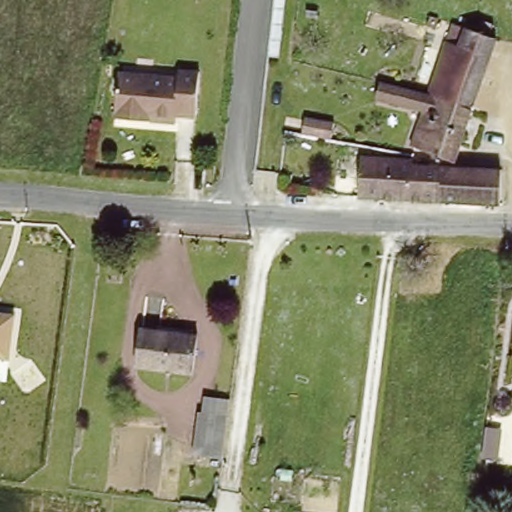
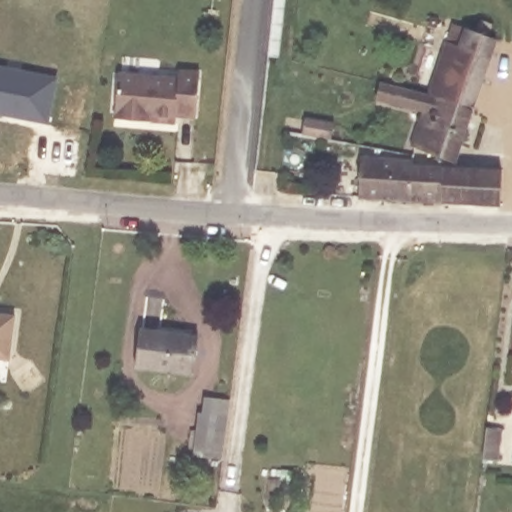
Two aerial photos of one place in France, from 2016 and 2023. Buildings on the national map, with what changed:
unchanged [(435,68),(447,31),(455,33),(459,23),(496,31),(480,79),(435,68)]
new [(7,67),(5,71),(24,74),(25,71),(56,77),(47,123),(12,116),(13,113),(6,112),(2,115),(0,114),(0,66),(7,67)]
unchanged [(473,101),(429,88),(435,68),(480,79),(473,101)]
unchanged [(182,78),(182,69),(199,70),(195,116),(177,114),(177,118),(117,115),(120,74),(182,78)]
unchanged [(473,101),(457,157),(414,145),(424,112),(425,105),(407,98),(382,90),(388,74),(412,82),(429,88),(473,101)]
demolished [(314,117),(320,101),(347,110),(342,127),(314,117)]
unchanged [(300,131),(307,114),(335,124),(329,140),(300,131)]
unchanged [(412,165),(504,172),(500,205),(417,200),(360,194),(364,155),(412,159),(412,165)]
unchanged [(15,314),(9,360),(0,359),(0,312),(15,314)]
unchanged [(198,343),(192,375),(136,365),(142,333),(198,343)]
unchanged [(226,457),(202,453),(202,446),(195,445),(200,412),(207,413),(209,397),(235,400),(226,457)]

